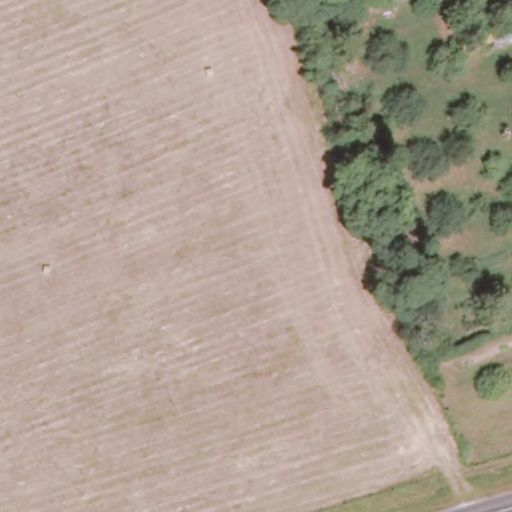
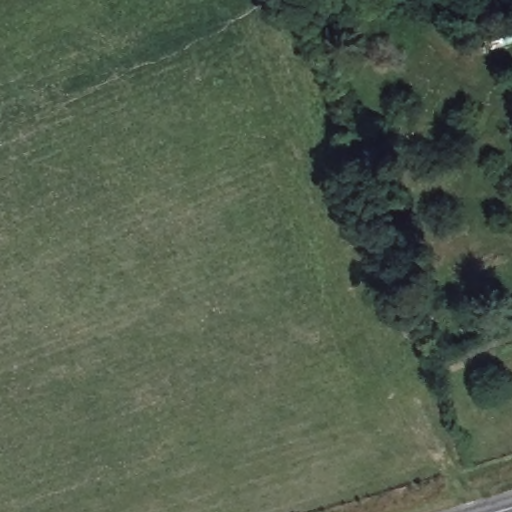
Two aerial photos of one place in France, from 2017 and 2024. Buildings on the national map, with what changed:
unchanged [(298,0),(371,0),(306,24),(298,0)]

